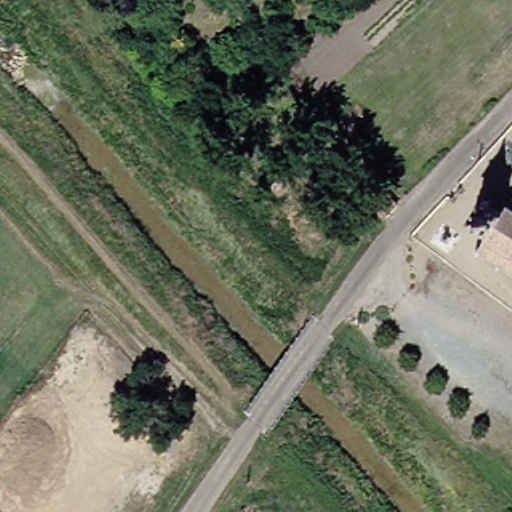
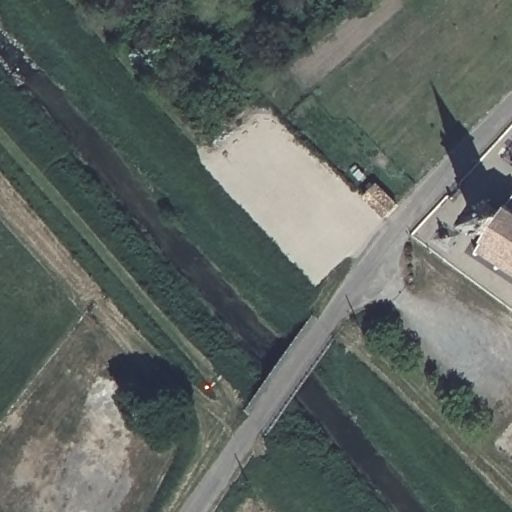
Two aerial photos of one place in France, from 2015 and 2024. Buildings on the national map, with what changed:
unchanged [(376,184),(398,205),(386,216),(365,195),(376,184)]
unchanged [(512,190),(512,283),(463,251),(479,228),(462,216),(474,200),(491,211),(507,187),(512,190)]

